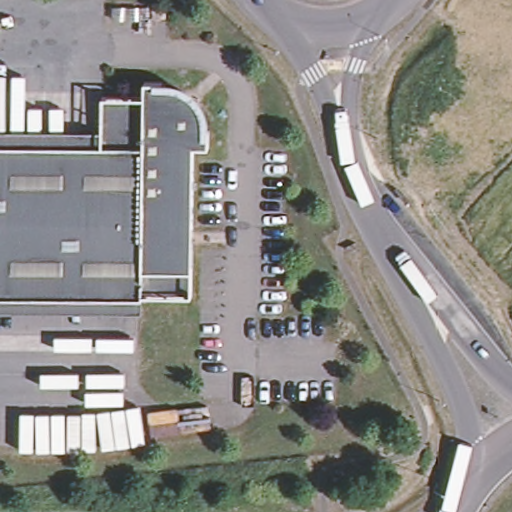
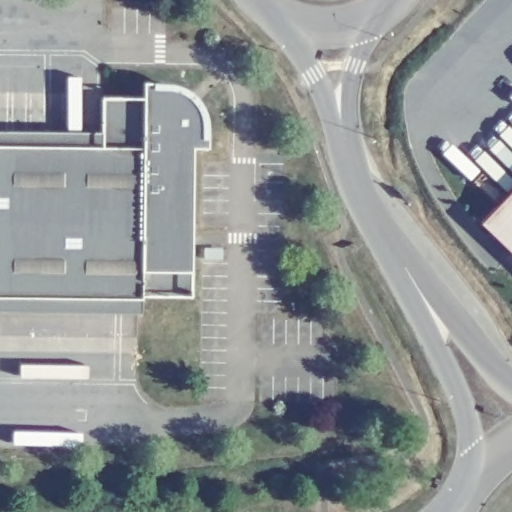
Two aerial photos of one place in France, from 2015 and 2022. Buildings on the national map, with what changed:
unchanged [(105,101),(147,101),(147,85),(164,85),(170,93),(175,94),(185,105),(189,101),(197,108),(192,113),(211,134),(210,152),(196,152),(193,300),(145,299),(145,303),(0,301),(0,149),(104,150),(105,101)]
new [(512,189),(512,254),(479,222),(512,189)]

